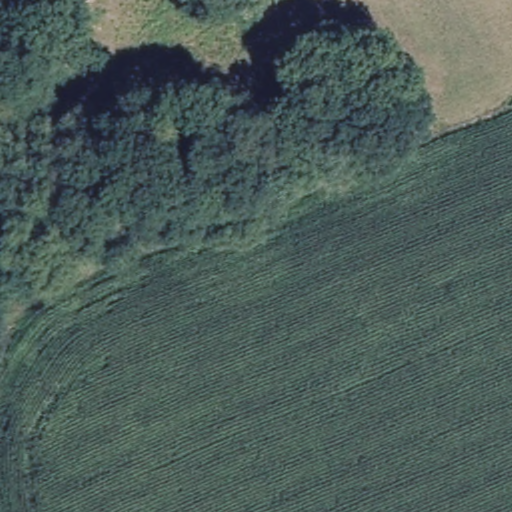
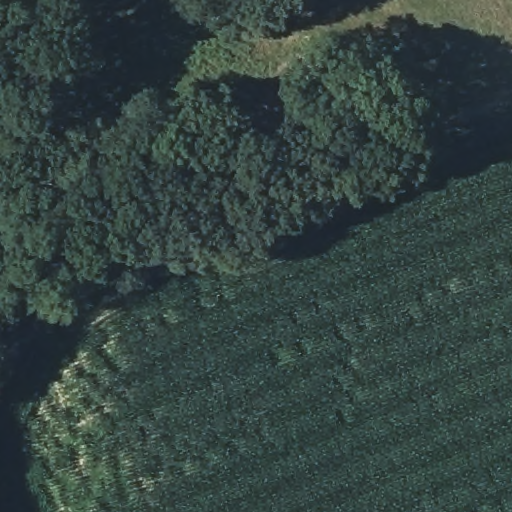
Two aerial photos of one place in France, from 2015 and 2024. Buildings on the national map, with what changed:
[]

